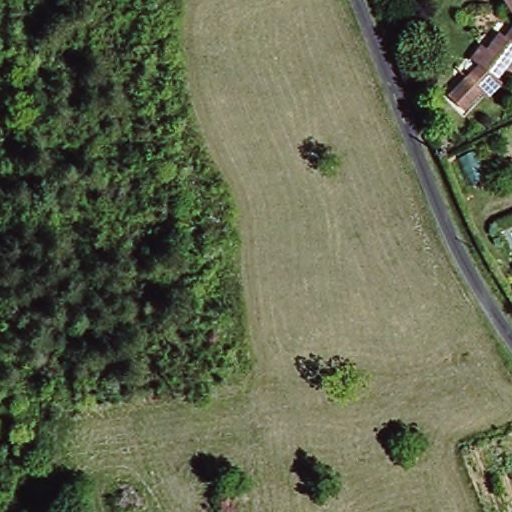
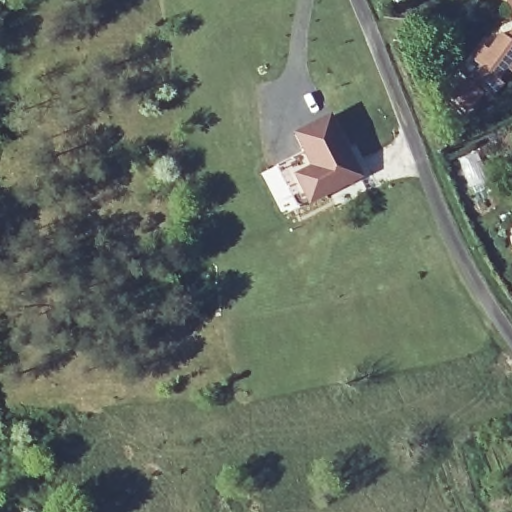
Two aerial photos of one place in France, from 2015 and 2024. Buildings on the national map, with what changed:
unchanged [(451,90),(483,60),(479,57),(474,53),(485,40),(491,45),(504,29),(509,33),(512,30),(512,66),(509,63),(499,73),(503,78),(488,92),(484,87),(465,105),(451,90)]
new [(333,113),(364,175),(308,203),(299,207),(279,165),(302,150),(293,134),(333,113)]

